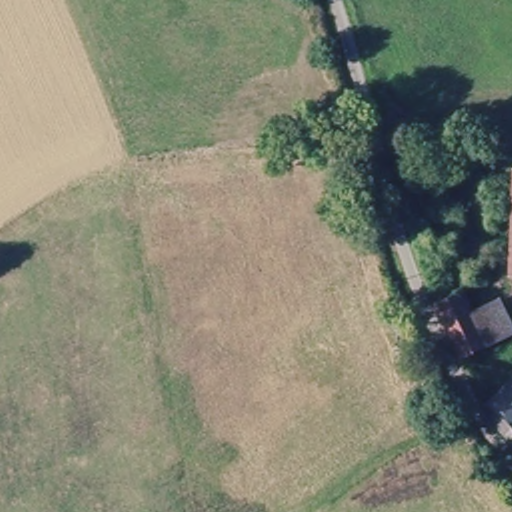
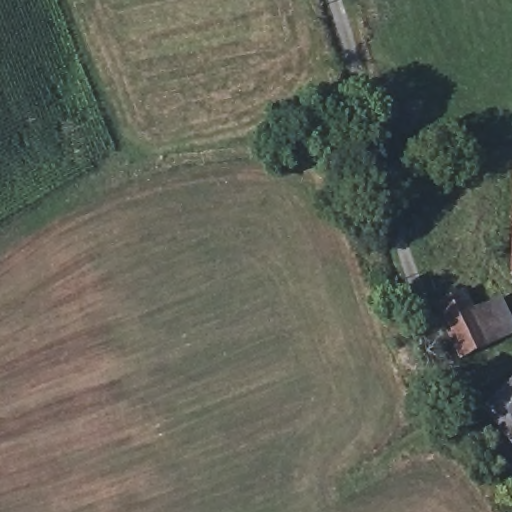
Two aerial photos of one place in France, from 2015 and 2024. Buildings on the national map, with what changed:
unchanged [(501,304),(512,325),(512,339),(494,347),(459,363),(433,308),(465,292),(477,315),(501,304)]
unchanged [(512,446),(484,412),(512,387),(512,446)]

